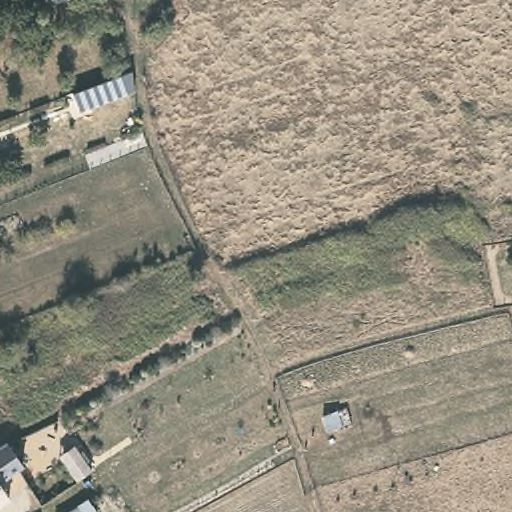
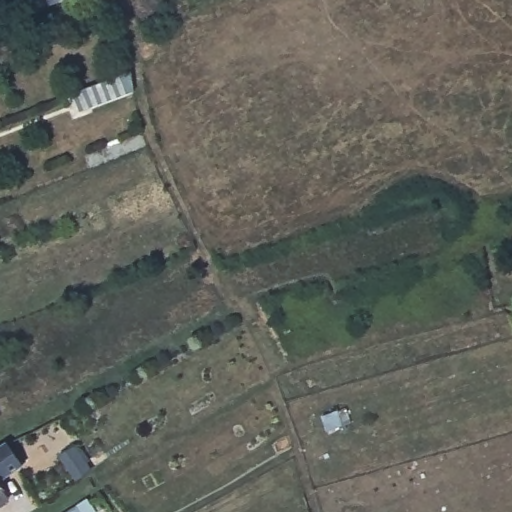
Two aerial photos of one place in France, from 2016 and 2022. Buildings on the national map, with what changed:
unchanged [(41,0),(68,0),(43,7),(41,0)]
unchanged [(130,74),(136,92),(79,109),(74,93),(130,74)]
unchanged [(9,442),(29,465),(6,479),(15,493),(0,503),(0,447),(3,445),(9,442)]
unchanged [(96,512),(65,512),(86,499),(96,512)]

